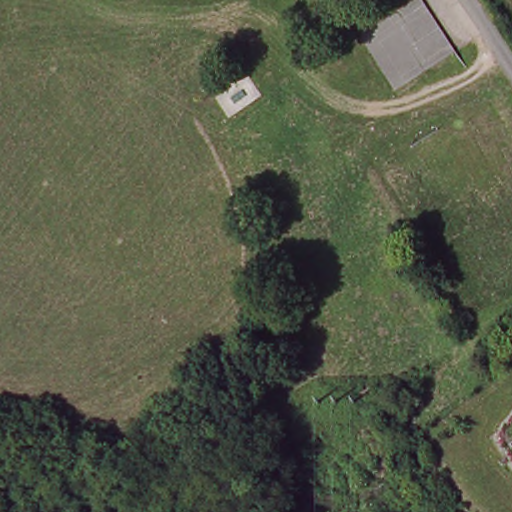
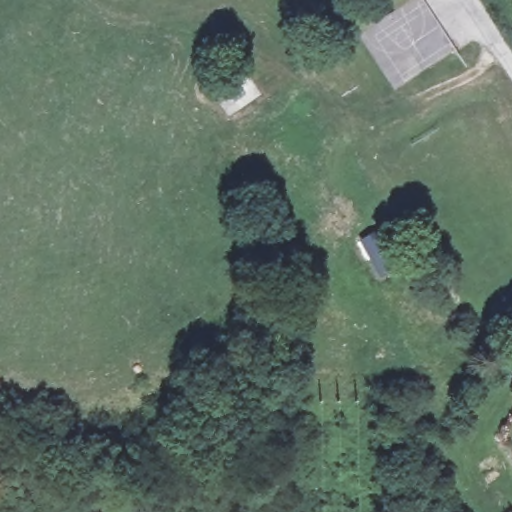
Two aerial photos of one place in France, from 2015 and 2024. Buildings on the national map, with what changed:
[]

